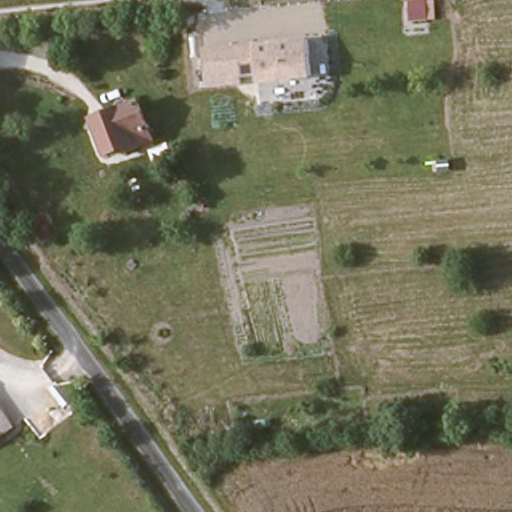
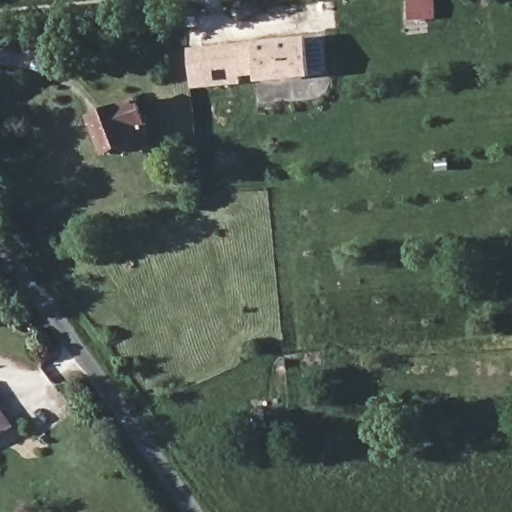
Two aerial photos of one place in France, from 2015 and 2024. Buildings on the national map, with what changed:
unchanged [(311,78),(257,83),(256,77),(240,79),(236,46),(308,37),(311,78)]
unchanged [(240,79),(240,84),(207,88),(201,50),(236,46),(240,79)]
unchanged [(87,121),(135,105),(149,140),(102,157),(87,121)]
unchanged [(0,442),(0,403),(18,429),(0,442)]

